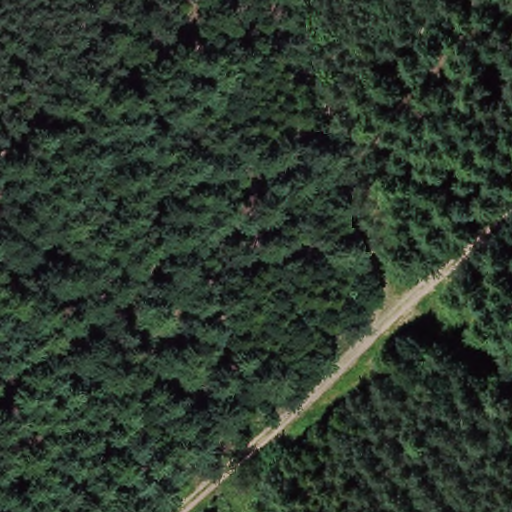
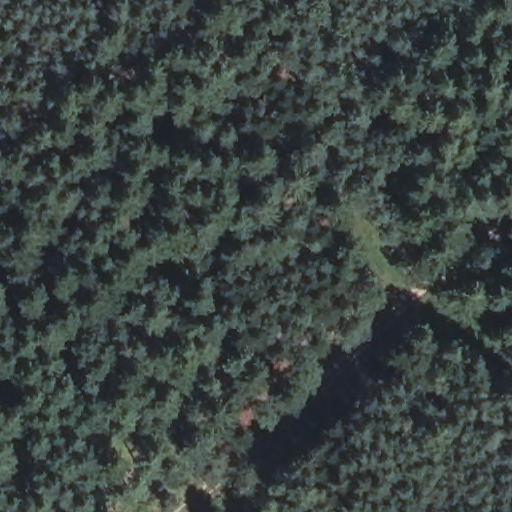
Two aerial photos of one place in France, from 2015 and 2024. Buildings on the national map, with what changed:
[]

